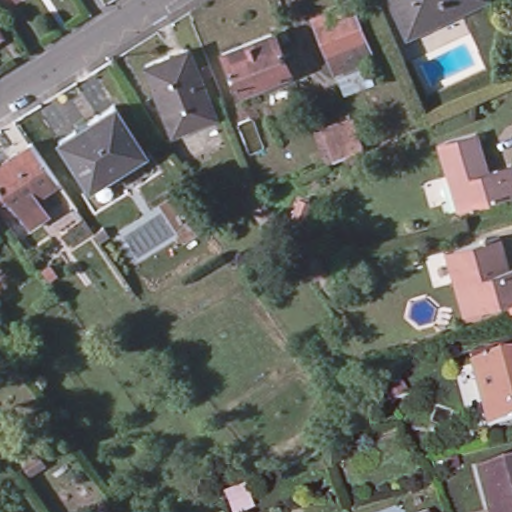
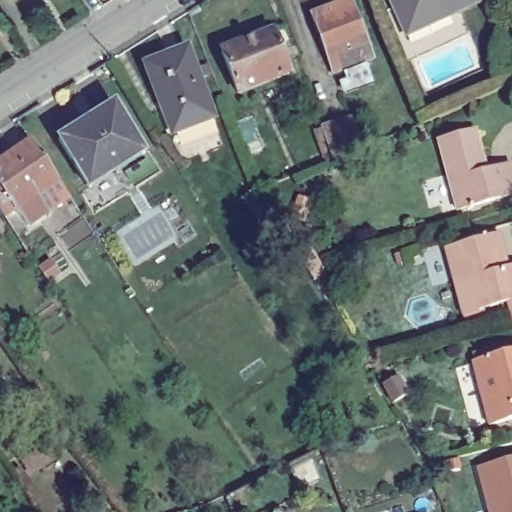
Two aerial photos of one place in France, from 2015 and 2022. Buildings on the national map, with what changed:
unchanged [(480,0),(408,28),(397,0),(480,0)]
unchanged [(339,77),(332,62),(315,20),(356,3),(374,44),(380,60),(339,77)]
unchanged [(0,37),(0,20),(7,32),(0,37)]
unchanged [(227,47),(277,25),(295,65),(245,88),(227,47)]
unchanged [(147,61),(187,44),(214,112),(173,128),(147,61)]
unchanged [(61,138),(114,102),(147,149),(93,185),(61,138)]
unchanged [(315,138),(322,135),(354,122),(357,121),(369,148),(334,162),(326,166),(315,138)]
unchanged [(442,138),(478,127),(490,167),(512,161),(512,191),(462,205),(442,138)]
unchanged [(27,207),(14,216),(0,196),(0,161),(37,135),(64,173),(42,188),(48,197),(60,216),(41,228),(29,209),(27,207)]
unchanged [(506,300),(462,313),(442,249),(496,233),(506,267),(512,265),(512,320),(506,300)]
unchanged [(297,258),(309,251),(319,267),(325,277),(314,284),(306,271),(297,258)]
unchanged [(496,426),(477,365),(474,355),(491,350),(512,344),(512,422),(496,426)]
unchanged [(484,466),(512,458),(512,512),(497,512),(484,466)]

